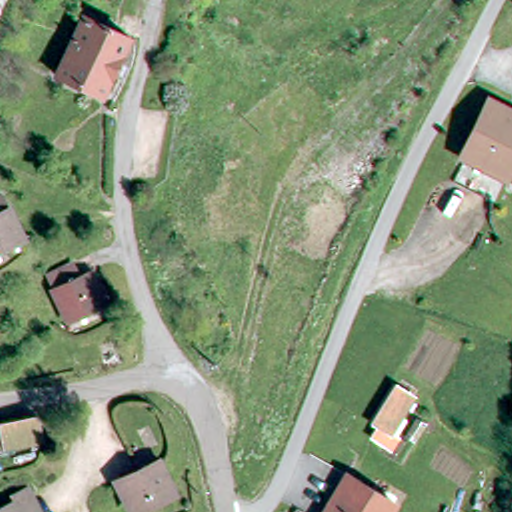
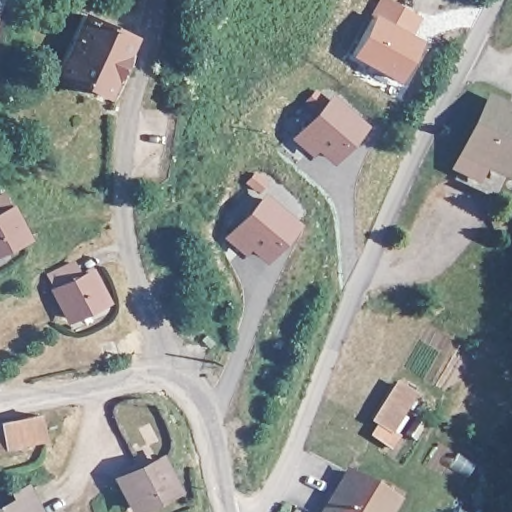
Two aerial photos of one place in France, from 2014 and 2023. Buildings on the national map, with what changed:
unchanged [(122,0),(122,1),(119,0),(122,0)]
new [(372,14),(380,0),(392,0),(420,15),(406,31),(419,39),(397,82),(351,56),(374,14),(372,14)]
unchanged [(101,91),(60,73),(85,16),(129,35),(101,91)]
new [(367,124),(332,166),(317,152),(311,158),(291,139),(331,93),(367,124)]
unchanged [(492,147),(475,139),(497,93),(512,100),(512,156),(492,147)]
unchanged [(499,185),(478,175),(462,166),(475,139),(492,147),(512,156),(499,185)]
new [(259,196),(245,182),(255,170),(272,185),(263,192),(298,224),(264,263),(249,250),(243,255),(222,237),(259,196)]
unchanged [(0,242),(0,192),(8,205),(23,231),(5,240),(0,242)]
unchanged [(64,321),(46,277),(67,265),(75,282),(90,273),(98,292),(102,300),(77,313),(64,321)]
unchanged [(374,435),(380,426),(376,422),(392,401),(400,390),(412,400),(405,411),(382,441),(374,435)]
unchanged [(0,437),(0,414),(30,410),(33,432),(0,437)]
unchanged [(164,485),(127,506),(119,488),(113,475),(152,455),(164,485)]
unchanged [(331,485),(342,467),(391,497),(387,503),(393,507),(390,512),(389,512),(385,509),(382,512),(322,512),(335,487),(331,485)]
unchanged [(0,505),(12,500),(9,491),(14,488),(23,484),(35,508),(37,512),(0,512),(0,505)]
unchanged [(292,510),(296,512),(291,512),(292,510)]

